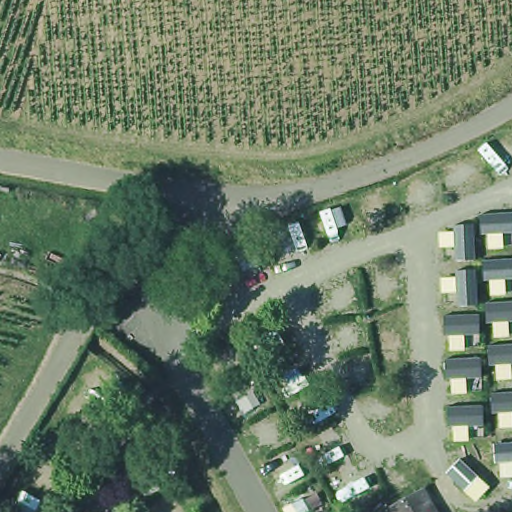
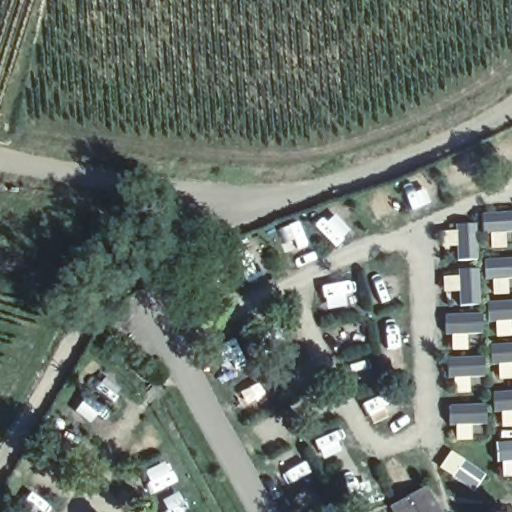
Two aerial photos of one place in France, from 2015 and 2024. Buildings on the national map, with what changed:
unchanged [(150,226),(146,225),(146,220),(151,220),(150,226)]
unchanged [(433,501),(439,512),(415,512),(433,501)]

